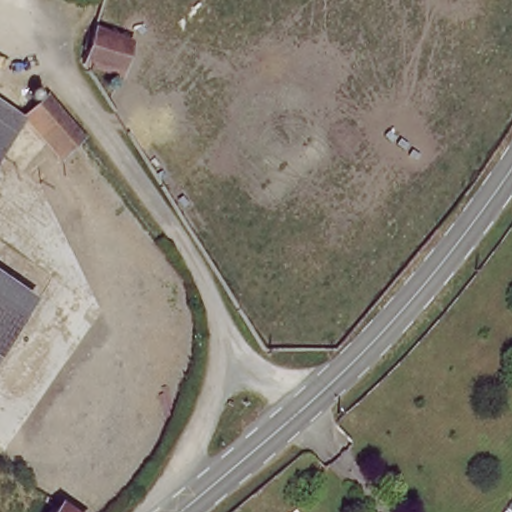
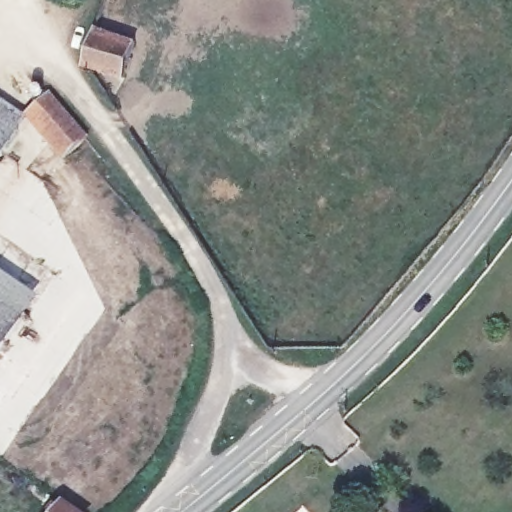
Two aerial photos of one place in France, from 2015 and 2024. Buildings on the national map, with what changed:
unchanged [(93,28),(139,45),(129,71),(82,58),(93,28)]
unchanged [(75,138),(71,134),(38,102),(55,84),(57,83),(93,119),(91,122),(75,138)]
unchanged [(34,114),(0,163),(0,91),(34,114)]
unchanged [(0,329),(0,271),(38,297),(11,336),(0,329)]
unchanged [(0,352),(0,329),(11,336),(0,352)]
unchanged [(76,512),(49,512),(57,500),(76,512)]

